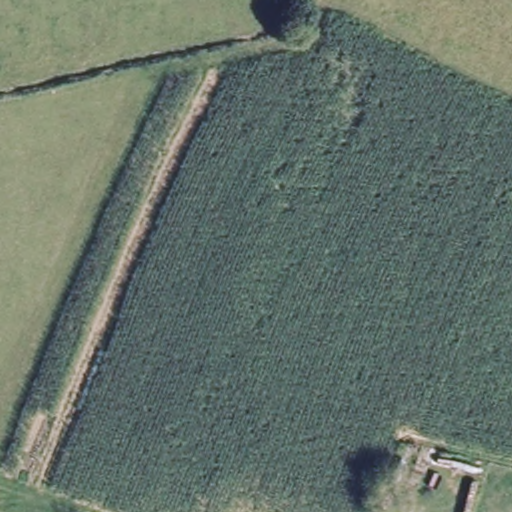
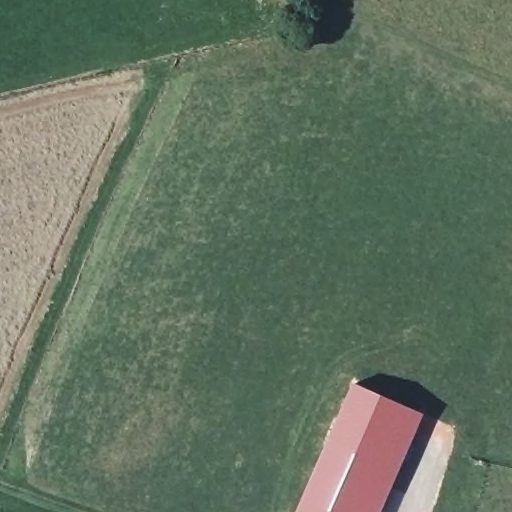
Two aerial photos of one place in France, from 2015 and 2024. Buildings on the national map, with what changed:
new [(423,415),(382,512),(297,512),(355,384),(423,415)]

